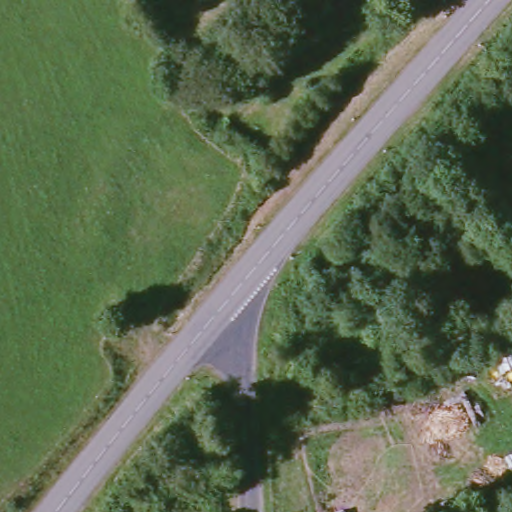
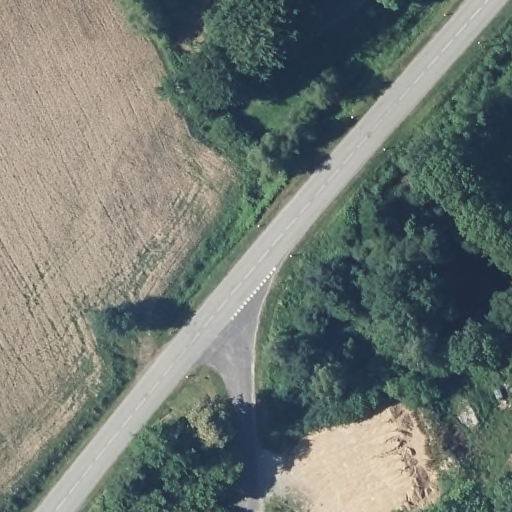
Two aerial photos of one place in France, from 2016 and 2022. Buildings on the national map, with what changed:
[]

